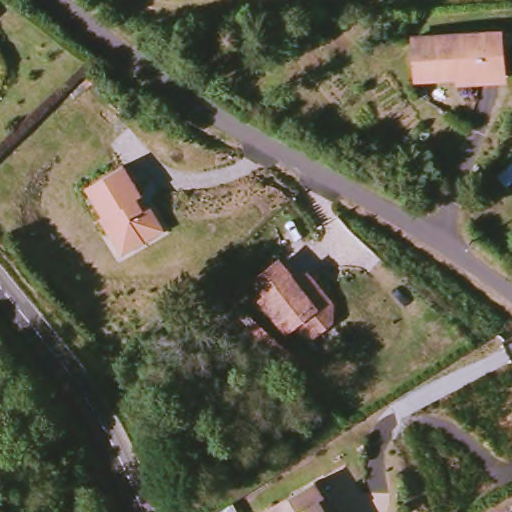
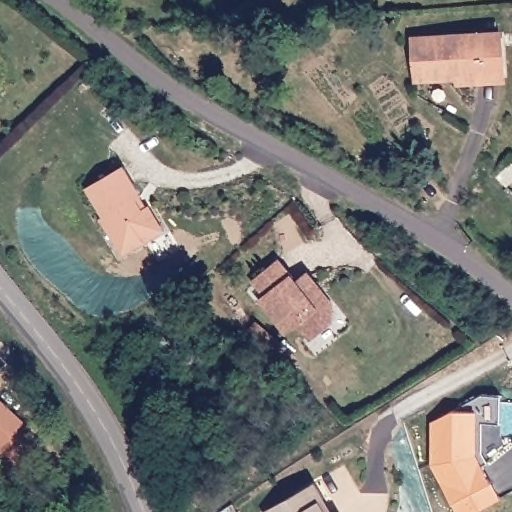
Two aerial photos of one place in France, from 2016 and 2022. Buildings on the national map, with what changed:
unchanged [(413,40),(500,33),(502,74),(414,78),(413,40)]
unchanged [(114,234),(104,217),(108,215),(91,187),(127,166),(143,195),(138,198),(144,208),(151,205),(165,228),(131,248),(124,252),(114,234)]
unchanged [(279,261),(297,283),(309,274),(331,301),(330,316),(310,331),(298,316),(287,324),(264,296),(269,292),(258,278),(279,261)]
new [(474,411),(449,412),(481,395),(499,396),(499,425),(481,424),(479,454),(486,465),(479,469),(474,458),(474,411)]
new [(454,512),(431,467),(429,423),(449,412),(474,411),(474,458),(479,469),(497,501),(476,512),(454,512)]
unchanged [(318,484),(331,512),(268,512),(266,509),(318,484)]

